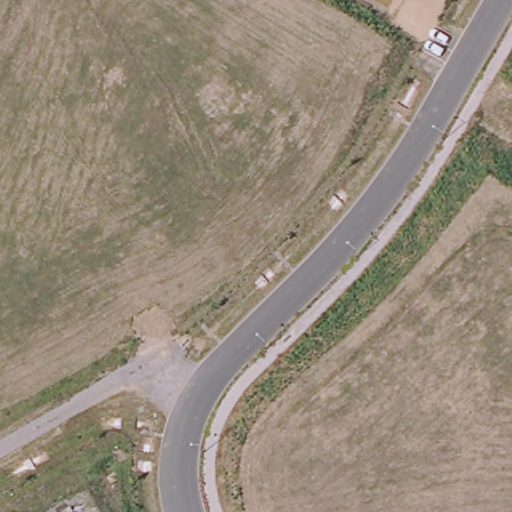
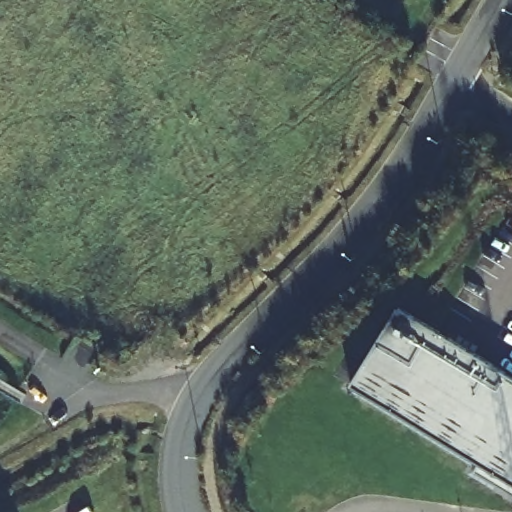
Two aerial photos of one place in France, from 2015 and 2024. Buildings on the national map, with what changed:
new [(400,307),(512,376),(512,495),(475,471),(480,463),(352,385),(400,307)]

